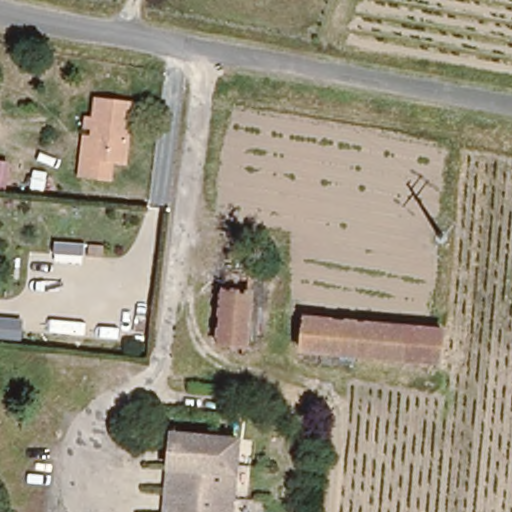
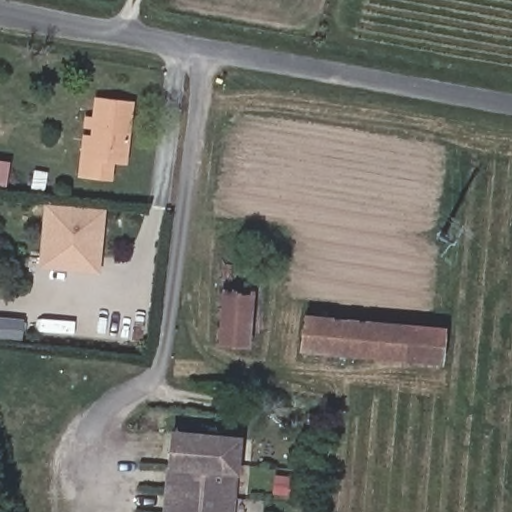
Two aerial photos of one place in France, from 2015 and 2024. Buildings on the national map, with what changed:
unchanged [(93,130),(86,130),(87,119),(93,120),(95,102),(131,105),(126,162),(115,162),(114,177),(87,175),(93,130)]
new [(42,207),(105,212),(100,275),(39,267),(42,207)]
unchanged [(218,343),(222,262),(249,263),(245,346),(218,343)]
new [(23,320),(21,340),(0,338),(0,317),(23,320)]
unchanged [(443,329),(441,359),(305,350),(307,320),(443,329)]
unchanged [(241,434),(236,512),(168,512),(174,430),(241,434)]

